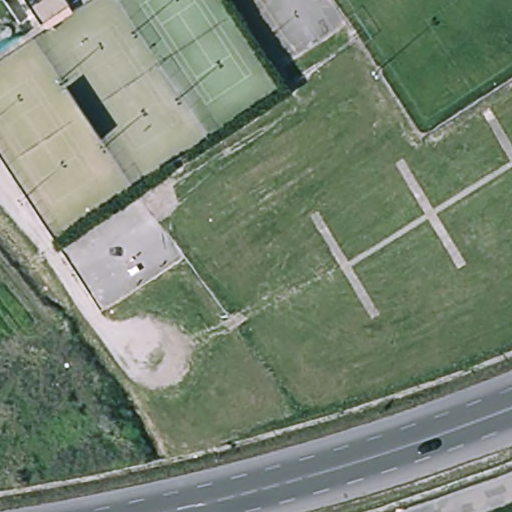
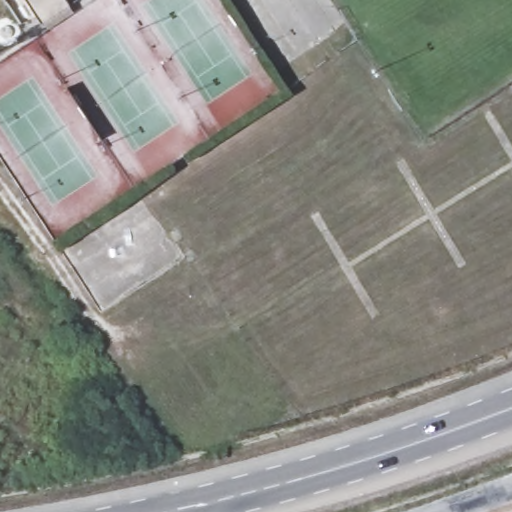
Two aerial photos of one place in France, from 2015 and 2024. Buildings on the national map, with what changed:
unchanged [(72,2),(45,19),(32,0),(71,0),(72,2)]
unchanged [(12,35),(12,36),(12,37),(11,37),(11,38),(11,39),(10,39),(9,39),(9,40),(8,40),(7,40),(6,40),(5,40),(4,40),(3,40),(3,39),(2,39),(2,38),(1,38),(1,37),(0,37),(0,36),(0,32),(1,31),(1,30),(2,30),(2,29),(3,29),(4,28),(5,28),(5,27),(6,27),(7,27),(7,28),(8,28),(9,28),(9,29),(10,29),(10,30),(11,30),(11,31),(12,32),(12,33),(12,34),(12,35)]

